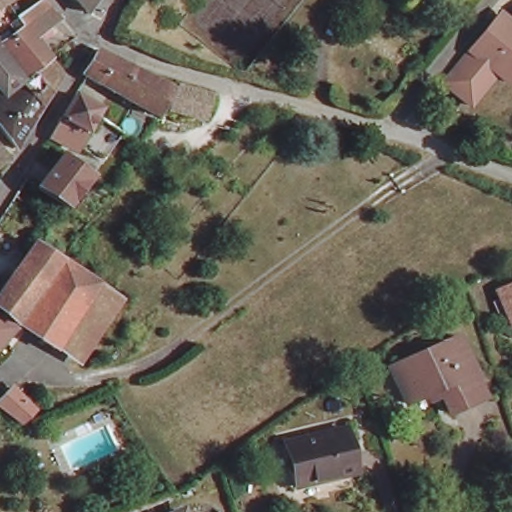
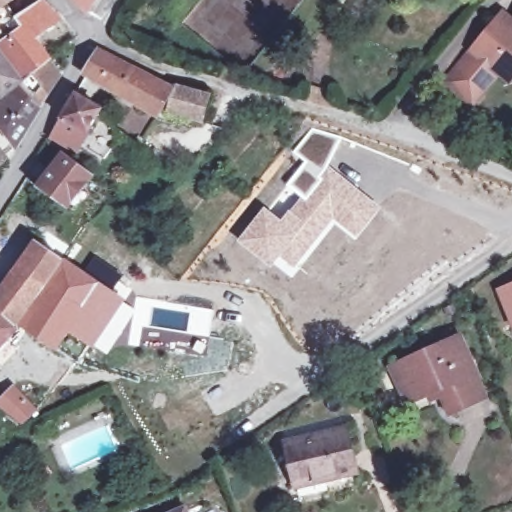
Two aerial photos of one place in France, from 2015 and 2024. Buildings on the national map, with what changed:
unchanged [(0,0),(9,0),(0,5),(0,0)]
unchanged [(74,0),(88,0),(82,9),(74,0)]
unchanged [(17,27),(11,19),(19,13),(37,1),(57,20),(25,37),(44,61),(45,64),(55,77),(45,94),(15,145),(12,150),(0,135),(0,40),(4,37),(17,27)]
unchanged [(506,86),(494,76),(472,104),(440,82),(497,12),(512,20),(512,78),(506,86)]
unchanged [(170,96),(157,117),(154,122),(78,78),(92,56),(95,57),(104,62),(129,76),(130,74),(154,87),(165,93),(170,96)]
unchanged [(170,96),(165,93),(170,90),(207,100),(200,130),(157,117),(170,96)]
unchanged [(87,117),(109,135),(90,160),(69,149),(68,151),(41,137),(65,95),(91,110),(87,117)]
new [(303,161),(292,152),(312,126),(342,136),(329,165),(305,200),(300,196),(286,185),(303,161)]
unchanged [(0,155),(4,160),(0,162),(0,155)]
unchanged [(59,209),(27,189),(55,155),(84,176),(59,209)]
new [(264,206),(281,219),(300,196),(305,200),(329,165),(382,207),(356,240),(334,222),(293,271),(279,258),(270,268),(236,240),(264,206)]
unchanged [(12,322),(0,313),(0,290),(34,244),(59,260),(12,322)]
unchanged [(52,350),(19,325),(61,262),(95,285),(52,350)]
unchanged [(117,300),(89,343),(74,365),(52,350),(95,285),(117,300)]
unchanged [(509,333),(494,297),(512,289),(512,332),(509,333)]
unchanged [(0,318),(10,328),(0,340),(0,318)]
unchanged [(432,391),(430,392),(422,395),(420,389),(398,398),(392,383),(382,362),(387,360),(450,332),(469,375),(464,377),(473,395),(440,408),(432,391)]
unchanged [(24,422),(0,405),(17,390),(37,412),(24,422)]
unchanged [(357,473),(295,487),(285,442),(346,428),(357,473)]
unchanged [(179,507),(181,512),(166,512),(179,507)]

